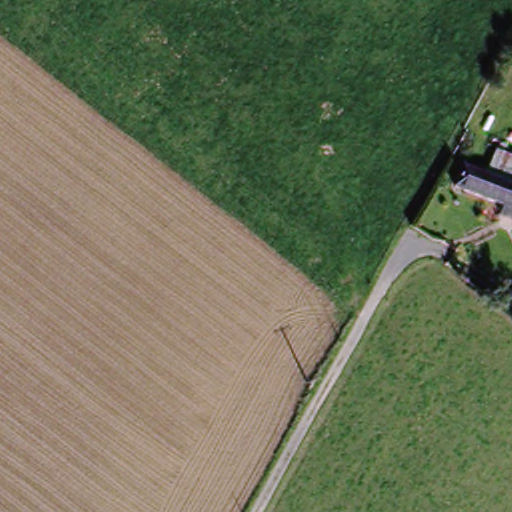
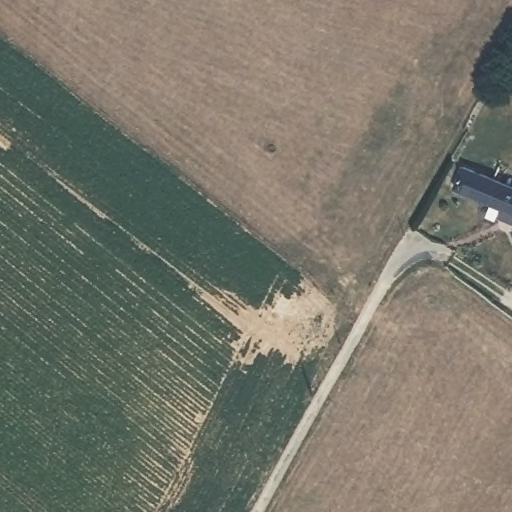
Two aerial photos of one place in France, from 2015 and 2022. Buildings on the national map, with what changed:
unchanged [(499,176),(506,162),(512,165),(512,223),(507,221),(511,212),(449,189),(461,161),(499,176)]

